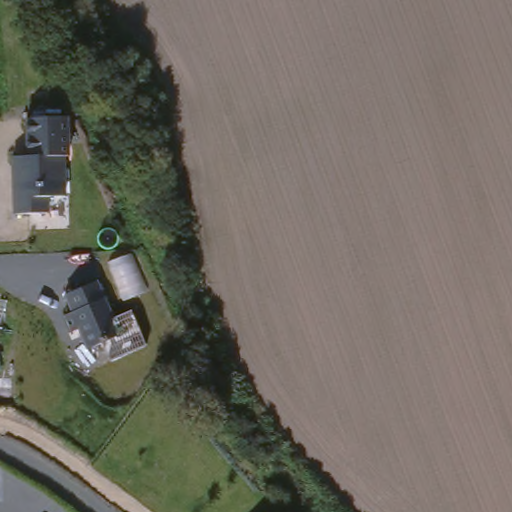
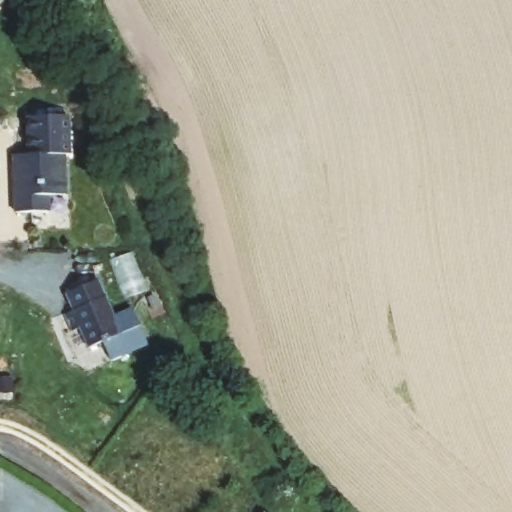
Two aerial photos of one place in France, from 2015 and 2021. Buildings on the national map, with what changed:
unchanged [(72,118),(73,155),(68,155),(69,195),(52,196),(53,213),(19,214),(18,156),(33,155),(32,118),(72,118)]
unchanged [(103,279),(139,344),(106,361),(86,327),(78,330),(70,314),(79,310),(71,294),(103,279)]

